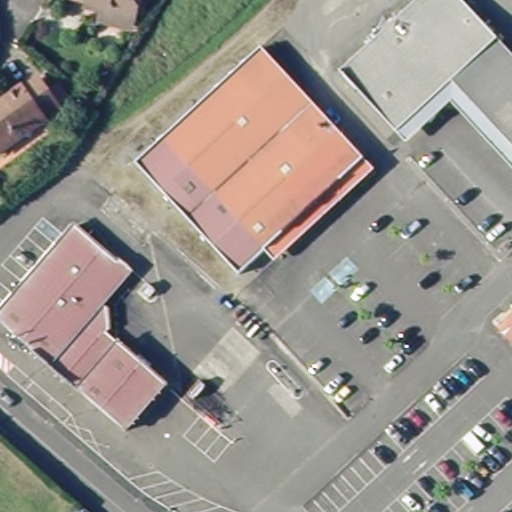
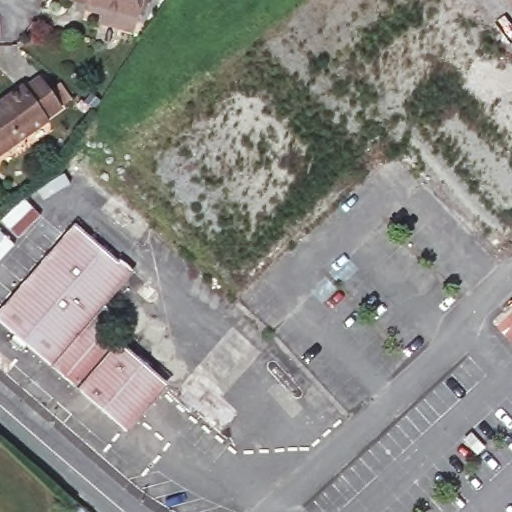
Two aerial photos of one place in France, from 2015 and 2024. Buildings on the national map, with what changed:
unchanged [(108,14),(91,9),(92,4),(77,0),(146,0),(140,23),(136,35),(105,26),(108,14)]
demolished [(417,111),(396,131),(357,89),(355,91),(352,94),(340,80),(343,78),(345,76),(340,71),(416,0),(460,0),(512,56),(512,148),(477,110),(479,94),(458,71),(441,72),(450,80),(440,90),(433,96),(443,106),(427,121),(417,111)]
demolished [(243,279),(139,166),(264,51),(368,163),(269,255),(243,279)]
unchanged [(18,94),(33,85),(53,114),(37,124),(40,126),(1,151),(0,149),(0,103),(16,92),(18,94)]
unchanged [(120,263),(124,259),(135,269),(105,304),(109,308),(112,333),(110,335),(170,386),(129,434),(0,323),(0,319),(79,228),(120,263)]
unchanged [(87,512),(76,512),(79,507),(87,512)]

